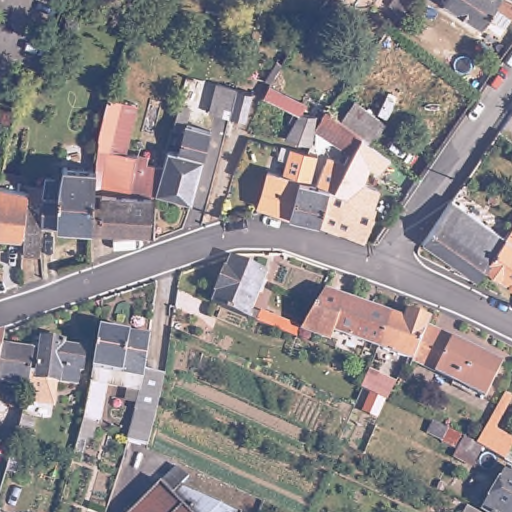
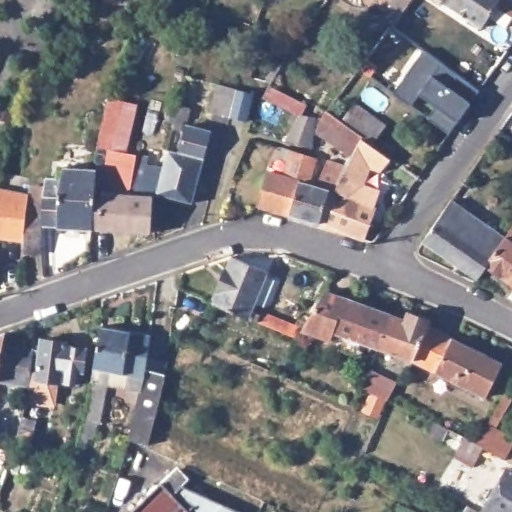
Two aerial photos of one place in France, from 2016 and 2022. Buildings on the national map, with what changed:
unchanged [(394,4),(398,0),(414,0),(405,11),(394,4)]
unchanged [(491,19),(486,27),(448,4),(451,0),(512,0),(512,22),(510,25),(494,15),(491,19)]
new [(447,86),(469,103),(456,121),(447,133),(426,117),(435,105),(418,94),(410,104),(393,92),(423,51),(456,76),(447,86)]
unchanged [(244,60),(255,63),(251,77),(240,74),(244,60)]
unchanged [(246,121),(229,117),(208,112),(216,84),(236,89),(253,94),(246,121)]
unchanged [(100,169),(102,138),(104,129),(112,98),(141,104),(130,153),(140,154),(134,185),(132,204),(130,230),(97,229),(100,169)]
unchanged [(330,192),(345,197),(349,182),(338,177),(345,163),(349,156),(315,130),(324,117),(327,111),(341,121),(354,103),(384,124),(372,144),(371,143),(366,155),(376,160),(370,177),(365,175),(361,188),(377,195),(374,206),(384,209),(376,232),(369,229),(365,238),(318,224),(327,192),(330,192)]
unchanged [(182,107),(195,110),(192,121),(190,120),(187,131),(177,129),(182,107)]
unchanged [(308,114),(315,116),(311,148),(284,139),(301,114),(308,114)]
unchanged [(163,182),(171,150),(184,153),(191,125),(215,130),(195,203),(160,195),(163,182)]
unchanged [(266,171),(282,175),(286,162),(277,159),(280,148),(316,159),(310,185),(298,182),(296,189),(288,214),(261,207),(258,205),(257,205),(256,206),(266,171)]
unchanged [(132,204),(134,185),(140,154),(150,157),(149,163),(164,166),(156,196),(153,232),(130,230),(132,204)]
unchanged [(296,189),(298,182),(310,185),(312,186),(327,159),(345,163),(338,177),(330,192),(327,192),(318,224),(288,214),(296,189)]
unchanged [(0,209),(1,203),(3,187),(32,193),(31,203),(48,204),(49,179),(66,179),(66,168),(100,169),(97,229),(46,226),(44,257),(28,255),(28,242),(0,237),(0,209)]
unchanged [(0,209),(0,202),(1,203),(0,209)]
unchanged [(455,204),(509,241),(508,243),(489,269),(490,271),(480,284),(427,247),(455,204)]
unchanged [(508,243),(509,241),(512,238),(512,286),(490,271),(489,269),(508,243)]
unchanged [(230,253),(267,267),(251,307),(258,310),(259,309),(278,317),(279,314),(301,323),(299,325),(296,332),(211,299),(230,253)]
unchanged [(301,323),(324,285),(337,290),(337,293),(390,311),(377,344),(332,328),(329,335),(299,325),(301,323)]
unchanged [(390,311),(402,315),(405,307),(428,315),(426,321),(412,357),(377,344),(390,311)]
unchanged [(426,321),(500,359),(485,392),(412,357),(426,321)]
unchanged [(105,328),(153,336),(148,371),(145,392),(111,387),(104,423),(88,419),(105,328)]
unchanged [(7,346),(37,349),(34,371),(32,386),(1,382),(0,390),(0,336),(9,333),(7,346)]
unchanged [(37,349),(38,343),(44,344),(45,340),(70,343),(70,347),(91,349),(88,373),(84,374),(83,385),(39,381),(41,371),(34,371),(37,349)]
unchanged [(366,376),(377,379),(383,365),(400,374),(386,401),(360,389),(366,376)]
unchanged [(145,392),(148,371),(168,374),(163,394),(151,444),(132,440),(145,392)]
unchanged [(456,456),(468,436),(479,442),(490,422),(506,394),(512,397),(512,401),(497,426),(512,434),(512,450),(508,458),(486,446),(474,466),(456,456)]
unchanged [(24,423),(26,415),(42,419),(31,463),(14,458),(24,423)]
unchanged [(510,467),(512,468),(512,512),(492,512),(486,509),(510,467)]
unchanged [(178,469),(188,479),(180,486),(238,512),(133,512),(178,469)]

